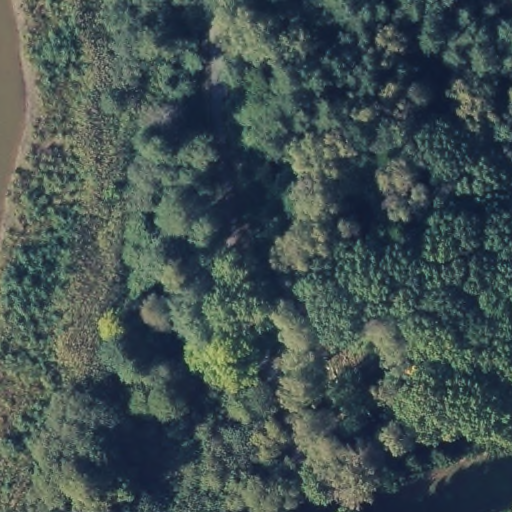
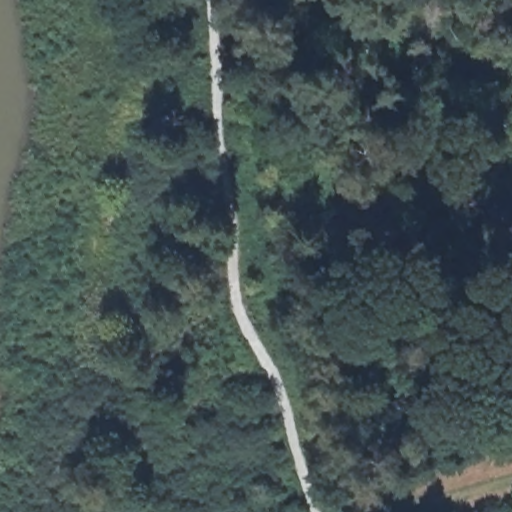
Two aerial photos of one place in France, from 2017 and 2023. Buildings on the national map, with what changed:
[]

